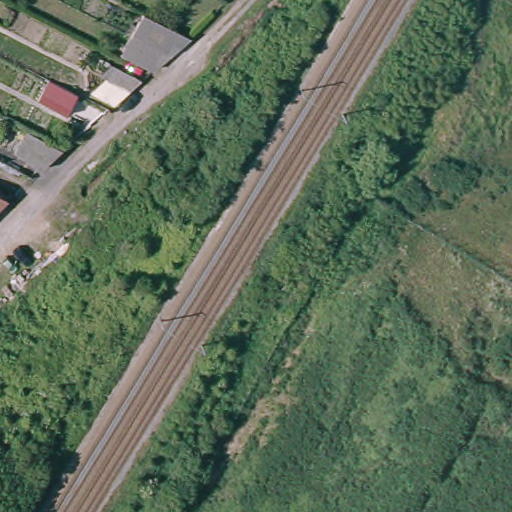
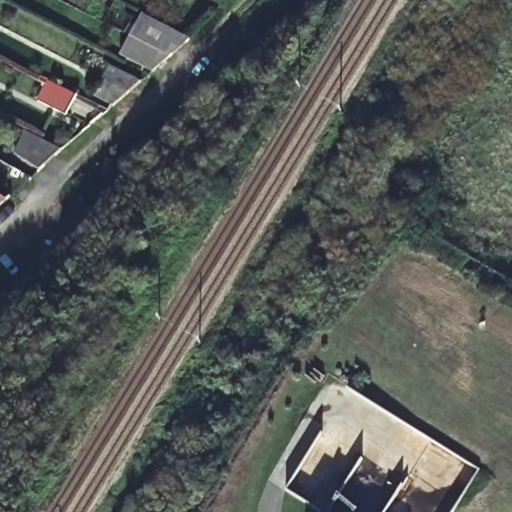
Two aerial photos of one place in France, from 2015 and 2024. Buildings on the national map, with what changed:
unchanged [(156,59),(120,40),(133,16),(178,39),(156,59)]
unchanged [(89,96),(103,82),(116,70),(140,82),(127,94),(112,108),(89,96)]
new [(46,81),(77,97),(66,118),(35,103),(46,81)]
unchanged [(26,132),(63,150),(58,154),(39,171),(13,155),(24,135),(26,132)]
unchanged [(0,198),(0,196),(1,197),(0,198)]
new [(349,388),(480,469),(454,512),(321,512),(286,490),(349,388)]

